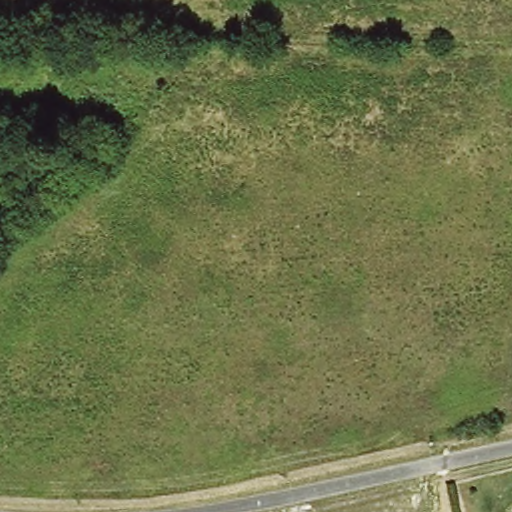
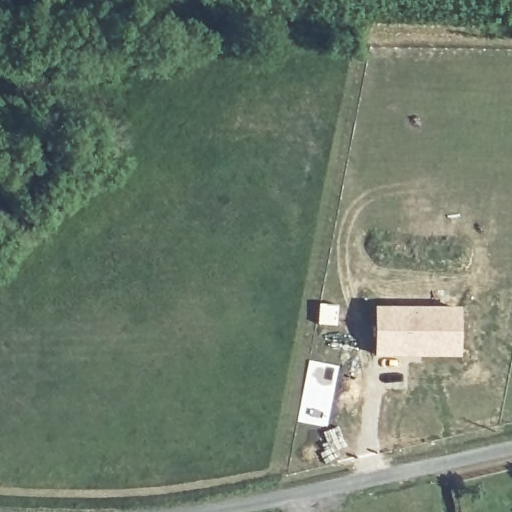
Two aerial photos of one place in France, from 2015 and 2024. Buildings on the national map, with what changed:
new [(374,305),(461,306),(461,357),(373,356),(374,305)]

